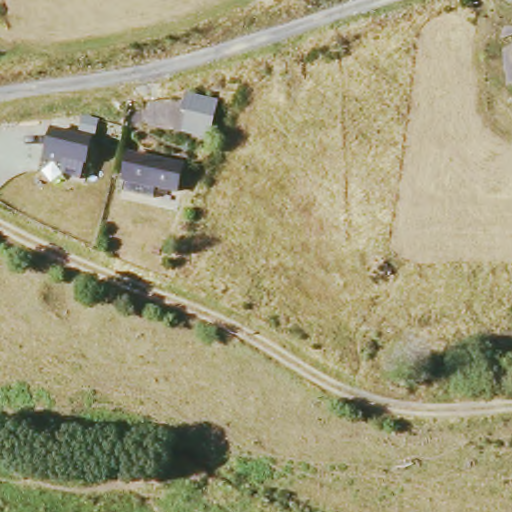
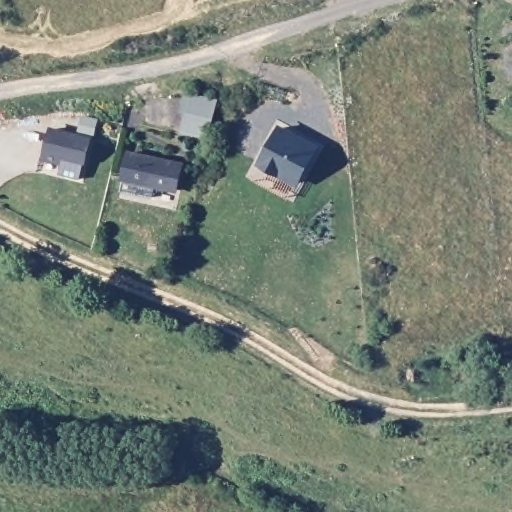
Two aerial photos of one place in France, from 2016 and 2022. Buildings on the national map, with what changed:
unchanged [(186,128),(190,114),(185,112),(189,95),(218,103),(214,120),(210,135),(186,128)]
new [(283,124),(320,144),(301,179),(292,195),(255,175),(264,159),(283,124)]
unchanged [(97,147),(92,168),(69,163),(68,167),(54,163),(59,140),(97,147)]
unchanged [(187,163),(183,186),(162,182),(160,195),(127,189),(135,153),(187,163)]

